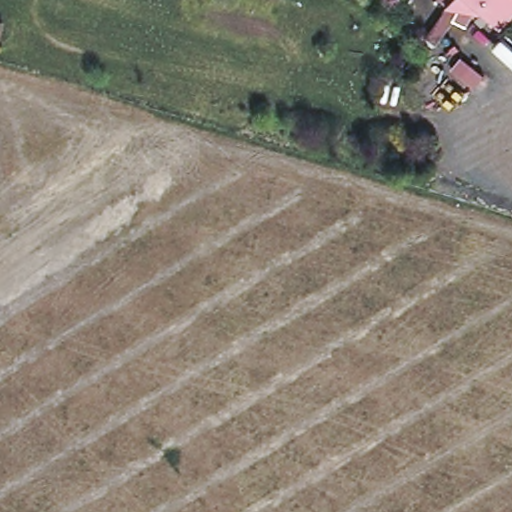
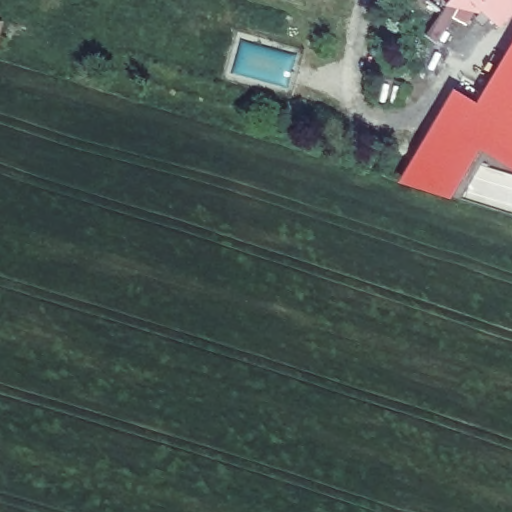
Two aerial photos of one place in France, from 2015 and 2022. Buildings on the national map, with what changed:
unchanged [(512,12),(501,23),(487,9),(483,12),(452,1),(454,0),(512,0),(512,12)]
unchanged [(2,23),(0,30),(0,22),(2,23)]
new [(451,199),(399,184),(455,90),(477,104),(512,42),(512,171),(477,150),(451,199)]
new [(484,75),(472,87),(448,67),(460,55),(484,75)]

